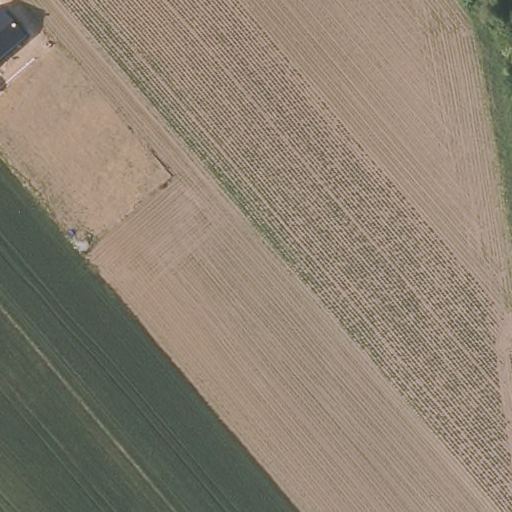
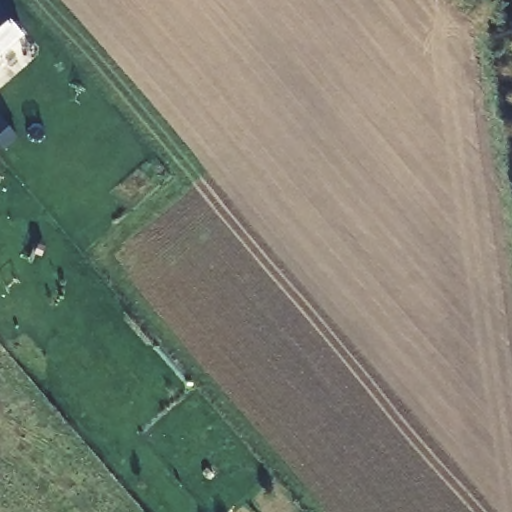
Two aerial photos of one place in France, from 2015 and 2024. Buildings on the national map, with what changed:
unchanged [(0,61),(0,9),(26,38),(0,61)]

